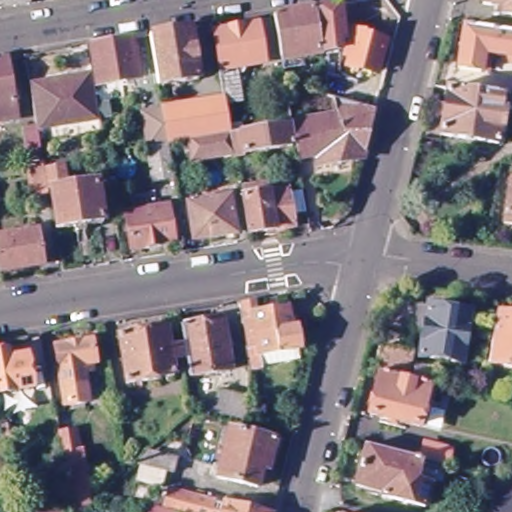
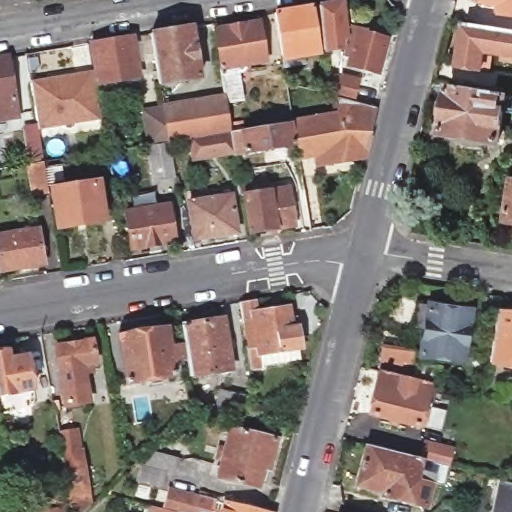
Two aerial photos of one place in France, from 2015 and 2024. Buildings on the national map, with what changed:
unchanged [(30,2),(0,7),(0,0),(30,0),(30,2)]
unchanged [(491,6),(492,0),(512,0),(512,10),(491,6)]
unchanged [(342,7),(346,38),(339,38),(341,53),(323,55),(319,11),(342,7)]
unchanged [(313,11),(320,54),(282,60),(275,18),(313,11)]
unchanged [(194,26),(203,78),(162,84),(154,33),(194,26)]
unchanged [(219,73),(222,73),(216,34),(259,27),(266,65),(237,70),(243,105),(225,108),(223,100),(219,73)]
unchanged [(484,56),(482,74),(458,71),(465,28),(512,36),(512,61),(484,56)]
unchanged [(349,69),(351,61),(346,59),(348,47),(353,49),(355,39),(357,32),(387,40),(385,47),(378,76),(349,69)]
unchanged [(137,35),(142,61),(138,61),(141,77),(104,82),(97,42),(137,35)]
unchanged [(23,116),(0,120),(0,59),(13,56),(23,116)]
unchanged [(27,128),(42,126),(35,83),(97,73),(104,118),(42,127),(47,162),(52,192),(34,196),(28,165),(33,164),(27,128)]
unchanged [(316,159),(301,161),(295,125),(337,118),(334,101),(328,99),(326,78),(356,85),(352,106),(377,112),(365,162),(327,167),(317,169),(316,159)]
unchanged [(503,147),(447,139),(453,92),(511,100),(503,147)]
unchanged [(190,143),(167,147),(161,110),(223,100),(225,108),(229,137),(289,127),(292,149),(232,158),(192,165),(190,143)]
unchanged [(165,150),(171,188),(155,190),(149,153),(165,150)]
unchanged [(82,229),(81,224),(62,227),(56,187),(54,188),(51,168),(64,165),(67,187),(102,181),(109,220),(91,223),(92,228),(82,229)]
unchanged [(512,180),(512,224),(504,223),(511,180),(512,180)]
unchanged [(244,232),(238,194),(280,187),(281,191),(297,189),(301,212),(285,215),(287,224),(244,232)]
unchanged [(224,195),(231,231),(189,238),(182,202),(224,195)]
unchanged [(149,251),(148,246),(131,249),(125,211),(169,203),(176,241),(158,244),(159,249),(149,251)]
unchanged [(43,264),(2,271),(0,262),(0,236),(37,229),(43,264)]
unchanged [(512,306),(512,356),(490,352),(497,303),(512,306)]
unchanged [(412,362),(411,361),(415,332),(405,331),(407,311),(417,312),(459,319),(453,367),(412,362)]
unchanged [(251,365),(246,333),(244,333),(242,313),(252,312),(254,323),(288,316),(291,330),(297,329),(298,336),(301,358),(261,363),(262,377),(249,379),(247,365),(251,365)]
unchanged [(222,318),(231,368),(190,375),(182,325),(222,318)]
unchanged [(167,328),(171,347),(181,346),(184,359),(172,360),(175,374),(127,383),(120,336),(167,328)]
unchanged [(97,345),(102,368),(89,370),(95,407),(70,411),(60,352),(97,345)]
unchanged [(376,349),(403,356),(401,368),(425,374),(421,388),(372,375),(369,374),(376,349)]
unchanged [(17,360),(19,368),(27,367),(33,398),(0,404),(0,363),(7,361),(17,360)]
unchanged [(410,430),(361,417),(372,375),(421,388),(410,430)]
unchanged [(264,430),(247,426),(203,415),(206,406),(216,408),(220,394),(248,401),(248,410),(264,411),(264,430)]
unchanged [(92,512),(77,512),(67,458),(61,418),(79,415),(86,455),(92,486),(96,508),(92,512)]
unchanged [(276,444),(272,466),(264,464),(257,491),(217,482),(229,432),(276,444)]
unchanged [(441,454),(437,470),(411,463),(416,448),(441,454)]
unchanged [(423,479),(415,511),(372,501),(373,497),(347,490),(358,450),(411,463),(407,475),(423,479)]
unchanged [(172,462),(169,476),(145,471),(148,457),(172,462)]
unchanged [(159,476),(155,492),(131,486),(134,471),(159,476)]
unchanged [(492,512),(499,479),(512,482),(512,512),(492,512)]
unchanged [(212,506),(211,512),(160,512),(164,494),(212,506)]
unchanged [(241,512),(220,512),(221,507),(241,512)]
unchanged [(155,512),(146,512),(146,510),(155,512)]
unchanged [(46,512),(43,512),(46,511),(46,512)]

